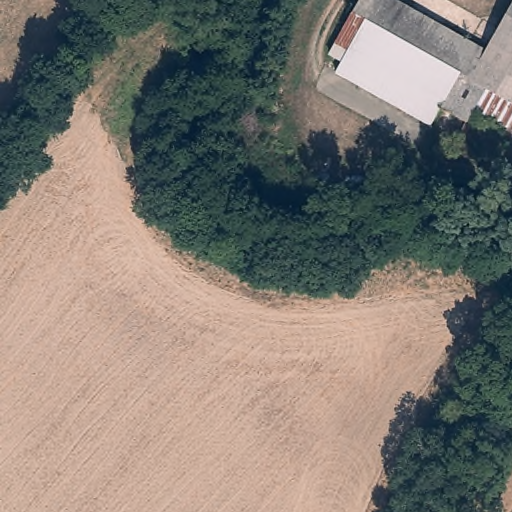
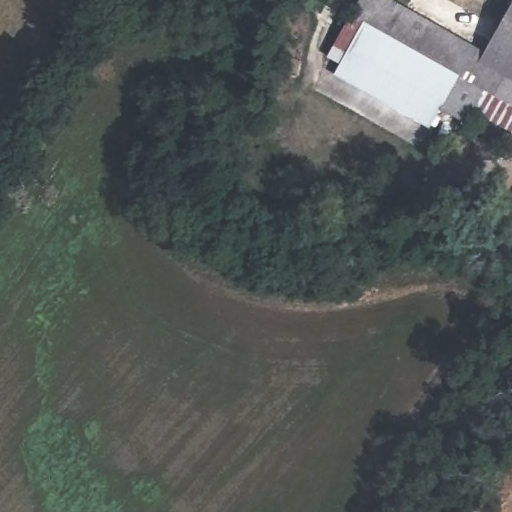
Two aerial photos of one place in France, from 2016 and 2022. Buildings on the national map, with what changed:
unchanged [(365,0),(399,0),(491,52),(512,64),(512,130),(478,110),(471,124),(445,109),(435,127),(340,74),(352,51),(340,44),(365,0)]
unchanged [(491,52),(512,15),(512,64),(491,52)]

